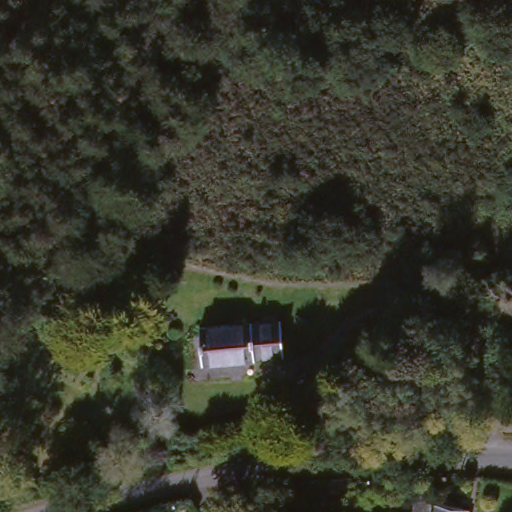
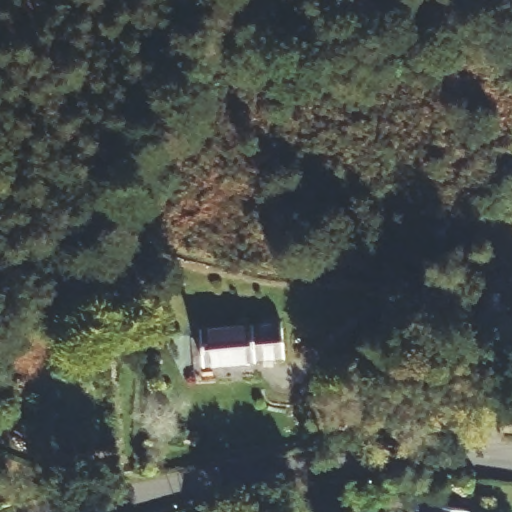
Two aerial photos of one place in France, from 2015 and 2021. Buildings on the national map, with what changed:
unchanged [(512,304),(512,334),(504,334),(504,304),(512,304)]
unchanged [(250,368),(244,372),(198,374),(196,335),(278,332),(278,364),(250,368)]
unchanged [(462,511),(462,512),(433,512),(434,508),(462,511)]

